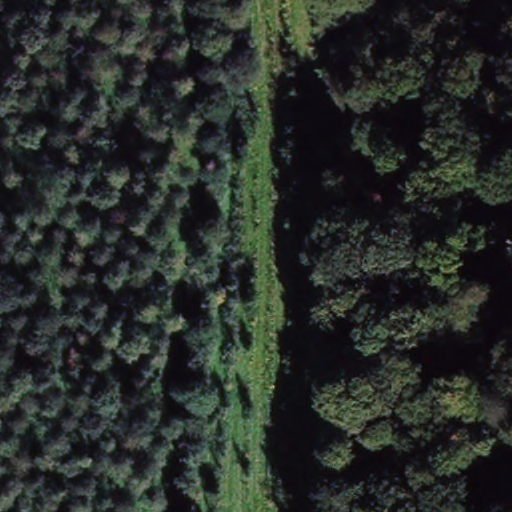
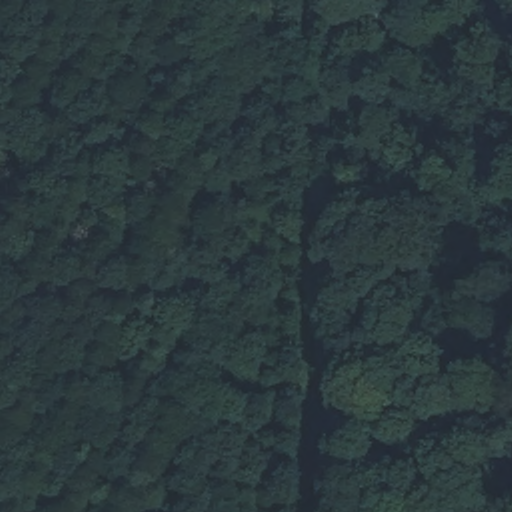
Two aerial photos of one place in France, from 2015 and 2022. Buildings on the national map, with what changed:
[]

